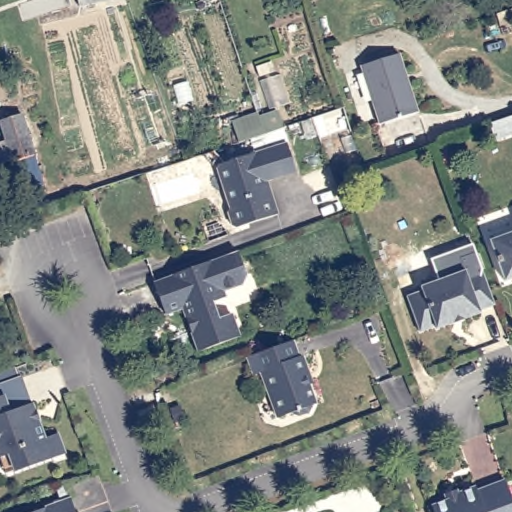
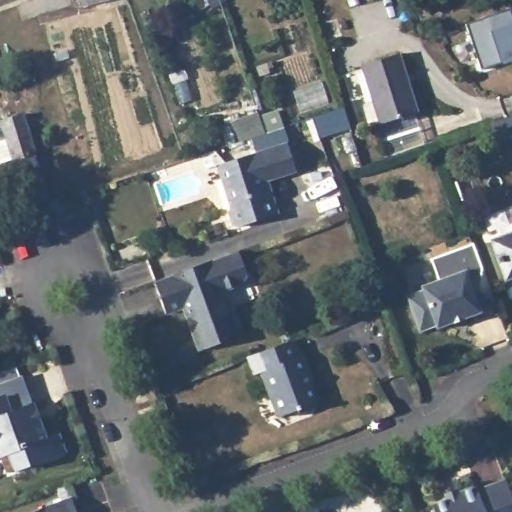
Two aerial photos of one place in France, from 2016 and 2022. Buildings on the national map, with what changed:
new [(512,18),(512,54),(478,66),(463,21),(508,6),(512,18)]
unchanged [(397,59),(416,116),(378,128),(359,71),(397,59)]
unchanged [(16,139),(9,120),(30,113),(51,182),(32,188),(22,159),(7,163),(0,143),(16,139)]
unchanged [(230,232),(226,230),(222,217),(224,213),(210,173),(213,169),(252,156),(281,146),(290,175),(262,185),(273,218),(230,232)]
unchanged [(510,210),(512,209),(512,229),(507,216),(510,210)]
unchanged [(512,230),(512,276),(498,282),(482,241),(512,230)]
unchanged [(236,251),(245,275),(241,284),(216,293),(212,301),(219,319),(231,314),(239,336),(198,351),(190,331),(194,329),(190,319),(186,320),(182,308),(165,314),(153,282),(236,251)]
unchanged [(419,285),(462,269),(464,274),(479,268),(492,303),(476,309),(478,314),(461,320),(460,317),(451,321),(451,323),(435,329),(432,324),(417,329),(410,308),(406,297),(420,290),(419,285)]
unchanged [(292,341),(298,357),(302,356),(309,374),(306,377),(315,401),(315,404),(311,405),(309,413),(295,418),(288,413),(278,417),(261,372),(253,375),(246,358),(292,341)]
unchanged [(0,466),(0,390),(21,383),(31,410),(44,445),(56,440),(63,458),(14,476),(5,479),(0,466)]
unchanged [(457,496),(454,491),(474,485),(476,489),(503,480),(512,505),(512,512),(432,512),(429,506),(457,496)]
unchanged [(69,499),(74,512),(33,512),(69,499)]

